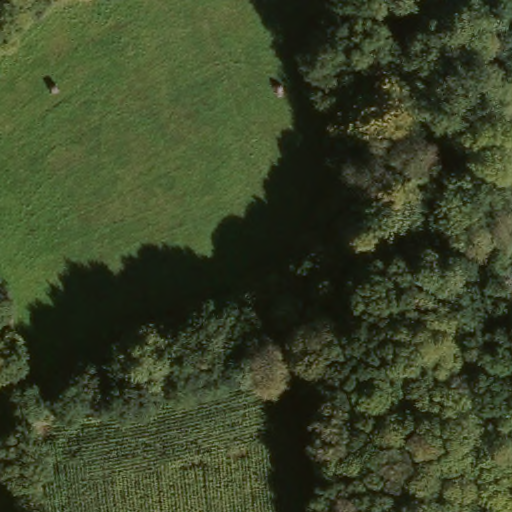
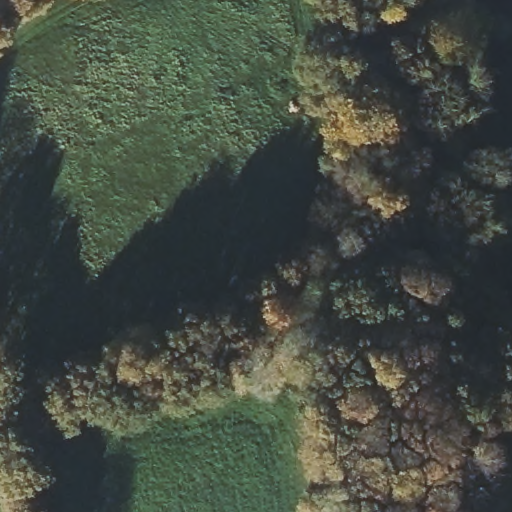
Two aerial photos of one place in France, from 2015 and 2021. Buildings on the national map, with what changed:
unchanged [(379,64),(374,37),(412,30),(418,56),(379,64)]

